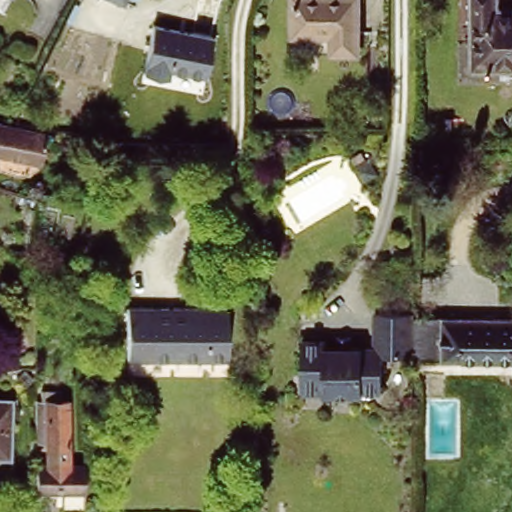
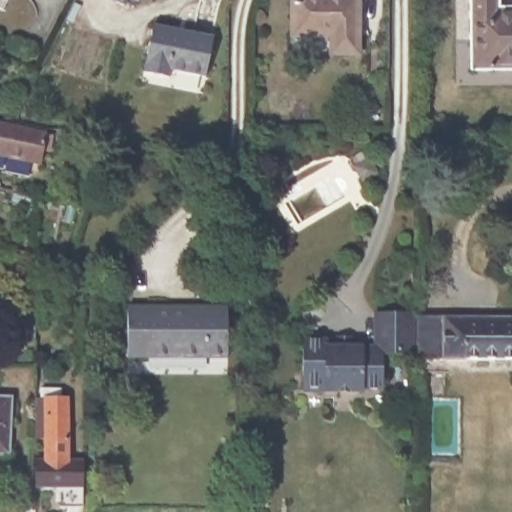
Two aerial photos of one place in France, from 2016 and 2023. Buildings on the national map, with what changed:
unchanged [(4,0),(5,0),(5,1),(4,0)]
unchanged [(114,0),(125,0),(123,4),(114,0)]
unchanged [(331,51),(331,39),(294,39),(295,0),(356,0),(356,50),(331,51)]
unchanged [(512,3),(512,63),(473,64),(472,0),(501,0),(501,4),(512,3)]
unchanged [(205,77),(168,67),(166,78),(140,69),(147,24),(210,32),(205,77)]
unchanged [(0,156),(0,118),(45,126),(40,162),(0,156)]
unchanged [(231,359),(128,356),(127,295),(233,296),(231,359)]
unchanged [(301,342),(324,342),(324,349),(335,349),(335,337),(350,337),(350,349),(373,350),(374,315),(413,315),(413,354),(383,353),(382,389),(363,388),(363,392),(301,391),(301,342)]
unchanged [(416,357),(418,315),(512,323),(512,364),(416,357)]
unchanged [(13,507),(12,473),(37,473),(36,458),(47,457),(46,433),(35,433),(35,412),(46,412),(46,399),(41,399),(41,392),(68,392),(69,457),(84,457),(83,501),(63,501),(62,476),(37,476),(37,507),(13,507)]
unchanged [(0,451),(0,396),(10,396),(8,451),(0,451)]

